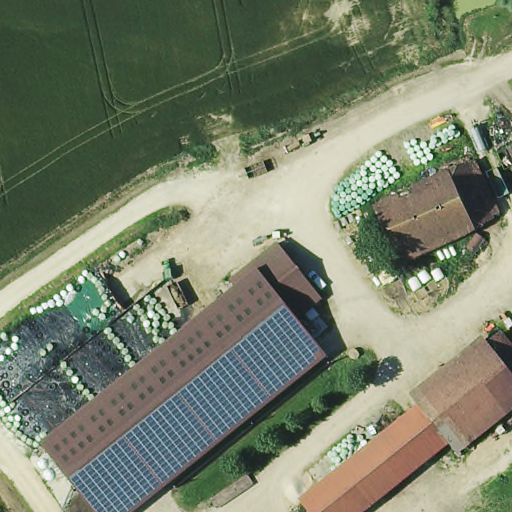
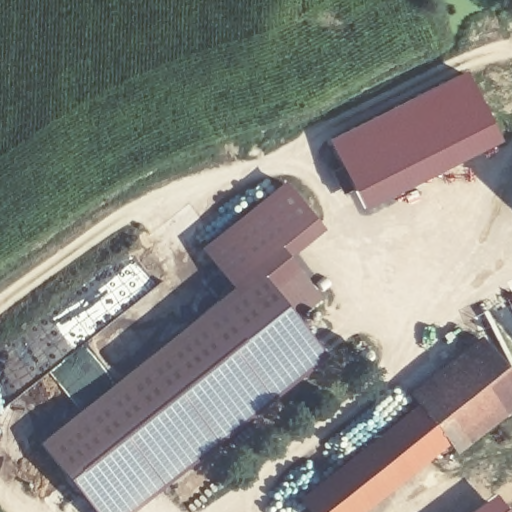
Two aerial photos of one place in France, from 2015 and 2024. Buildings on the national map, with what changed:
new [(425,89),(467,69),(502,141),(364,209),(326,138),(425,89)]
unchanged [(512,140),(512,174),(498,146),(512,140)]
demolished [(445,170),(469,158),(495,211),(471,223),(445,170)]
demolished [(397,258),(372,206),(445,170),(471,223),(397,258)]
new [(203,249),(287,183),(327,230),(287,261),(275,246),(229,282),(203,249)]
unchanged [(257,274),(235,290),(229,282),(275,246),(317,300),(292,319),(257,274)]
unchanged [(40,446),(235,290),(257,274),(292,319),(326,361),(136,512),(93,512),(40,446)]
unchanged [(488,352),(512,386),(512,398),(462,433),(432,391),(488,352)]
unchanged [(432,391),(462,433),(445,446),(416,404),(432,391)]
unchanged [(416,404),(445,446),(352,512),(312,512),(296,489),(416,404)]
new [(495,492),(509,512),(466,512),(495,492)]

